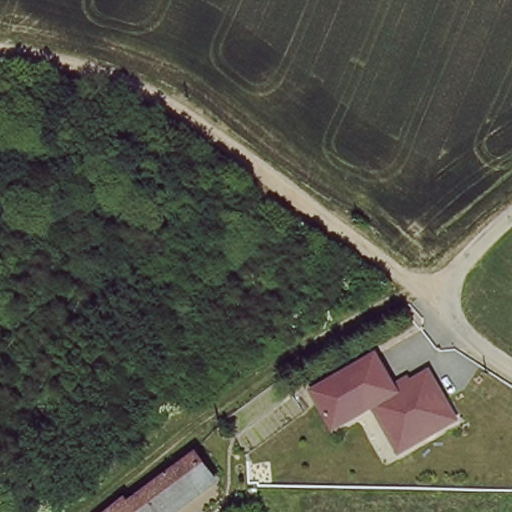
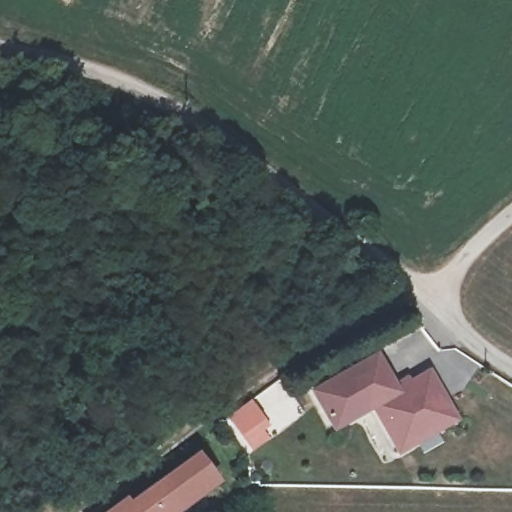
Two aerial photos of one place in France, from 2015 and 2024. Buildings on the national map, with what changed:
unchanged [(309,391),(376,350),(399,387),(428,369),(458,422),(394,458),(369,411),(331,432),(309,391)]
new [(272,428),(249,444),(230,418),(254,402),(272,428)]
unchanged [(168,472),(195,452),(219,480),(190,504),(168,472)]
unchanged [(154,482),(168,472),(190,504),(179,512),(115,512),(154,482)]

